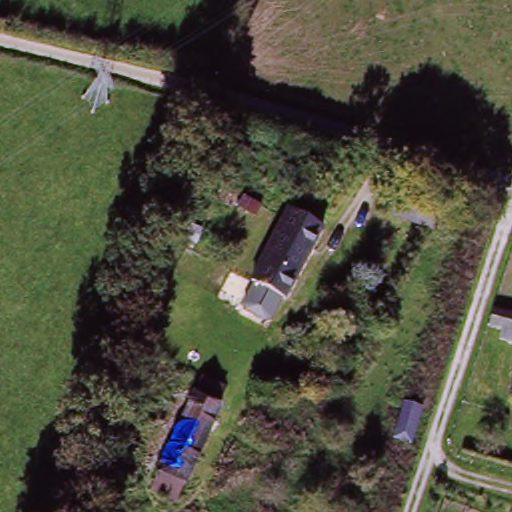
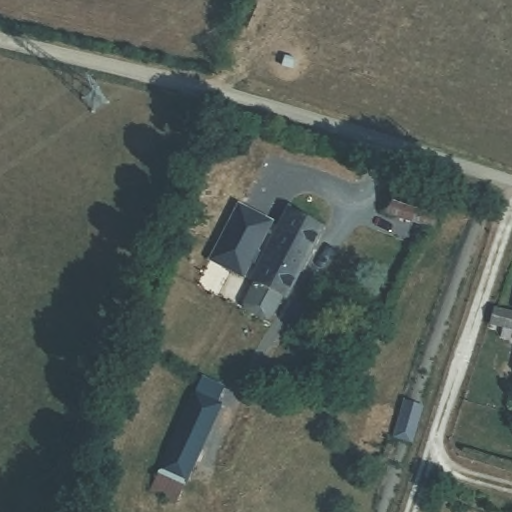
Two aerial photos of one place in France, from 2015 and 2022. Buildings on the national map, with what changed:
unchanged [(400,228),(404,215),(382,207),(391,184),(424,196),(427,197),(442,202),(439,209),(449,214),(444,229),(431,224),(426,237),(400,228)]
new [(274,221),(243,278),(208,261),(238,203),(274,221)]
unchanged [(250,288),(247,286),(288,209),(324,226),(283,306),(273,301),(265,313),(243,300),(250,288)]
unchanged [(413,364),(431,370),(408,442),(389,436),(413,364)]
unchanged [(198,388),(219,399),(213,412),(219,416),(172,512),(167,512),(144,500),(198,388)]

